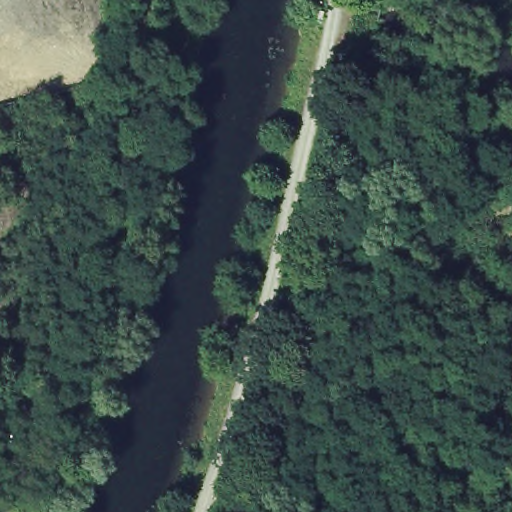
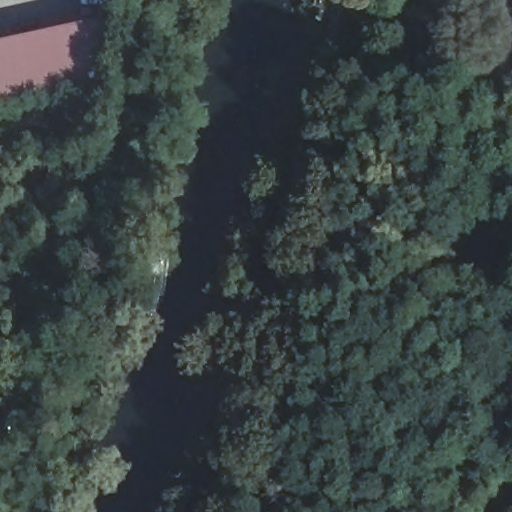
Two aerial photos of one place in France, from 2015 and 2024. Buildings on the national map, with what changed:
new [(109,59),(106,84),(0,106),(0,40),(101,19),(109,59)]

